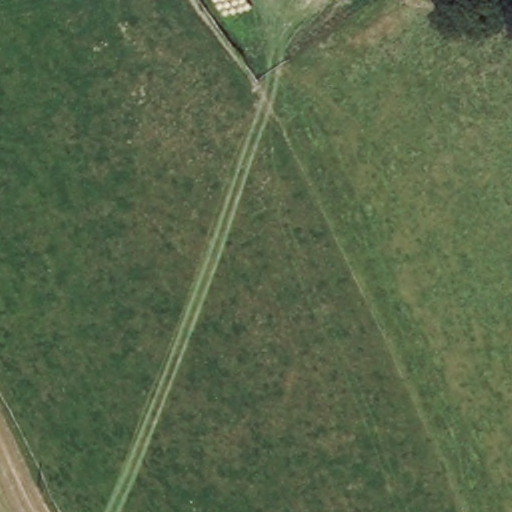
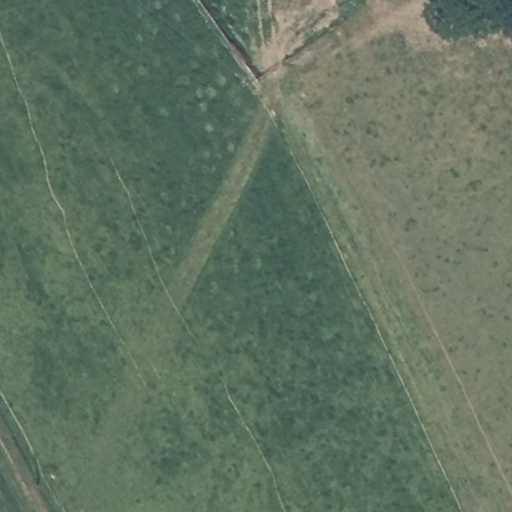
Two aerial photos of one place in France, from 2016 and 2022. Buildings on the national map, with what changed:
[]

